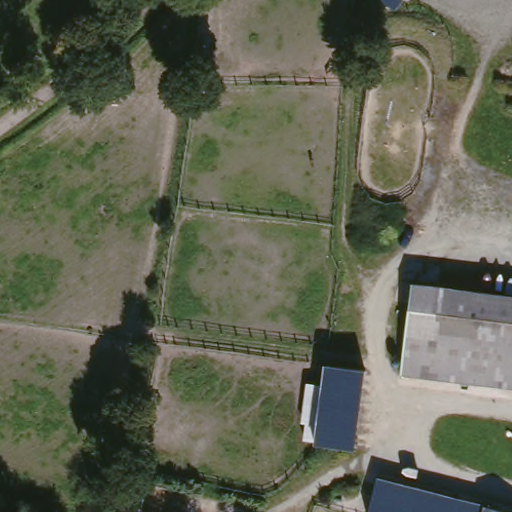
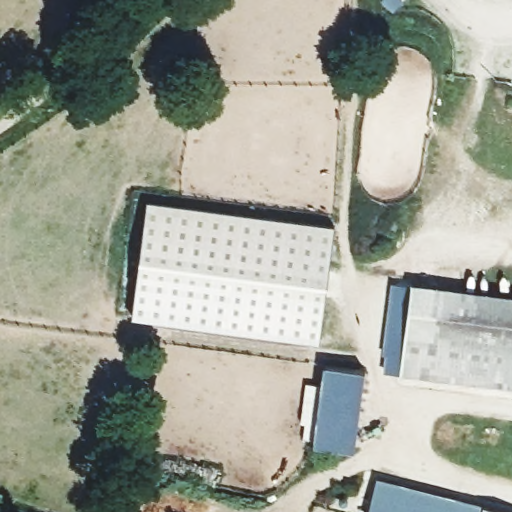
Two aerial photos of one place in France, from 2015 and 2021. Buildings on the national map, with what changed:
new [(134,317),(149,201),(333,225),(319,342),(134,317)]
unchanged [(413,287),(512,301),(512,389),(401,374),(413,287)]
unchanged [(355,449),(315,444),(303,440),(305,423),(300,423),(305,381),(321,381),(322,365),(364,369),(355,449)]
unchanged [(512,511),(512,512),(369,512),(377,477),(512,511)]

